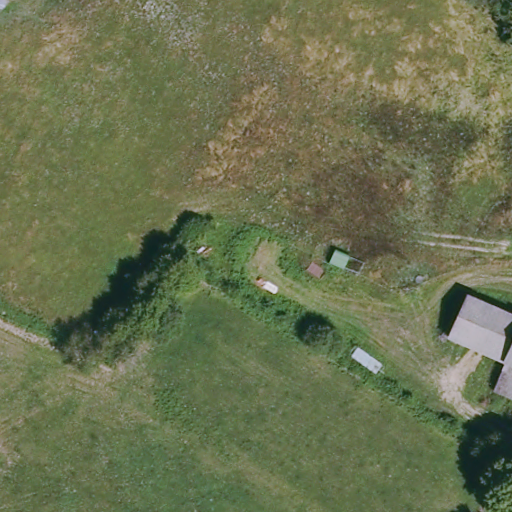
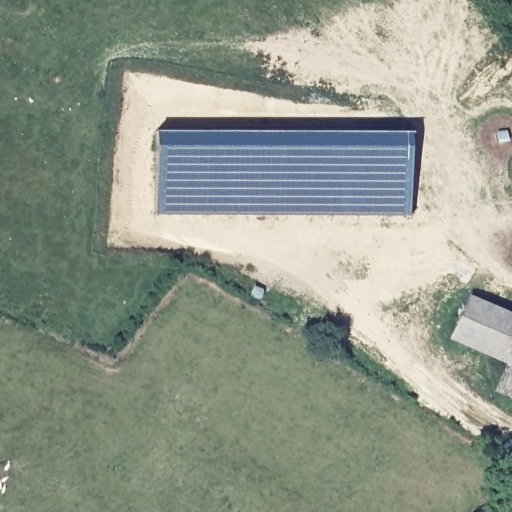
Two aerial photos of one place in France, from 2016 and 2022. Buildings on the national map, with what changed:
new [(409,132),(409,215),(157,214),(158,132),(409,132)]
unchanged [(452,344),(469,302),(512,320),(512,353),(506,367),(452,344)]
unchanged [(506,367),(512,353),(512,399),(494,391),(506,367)]

